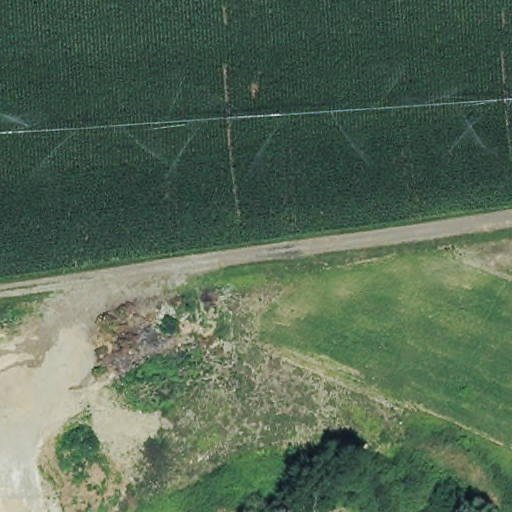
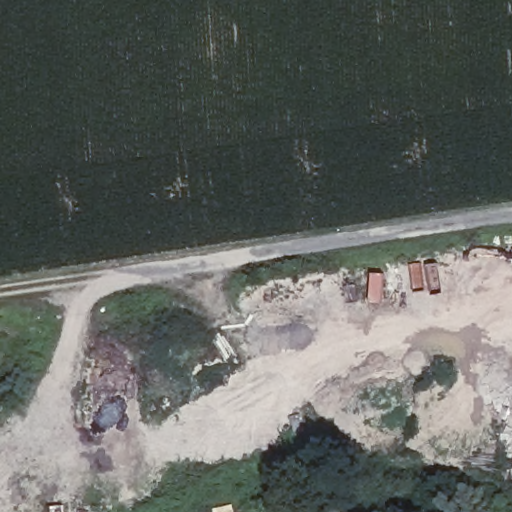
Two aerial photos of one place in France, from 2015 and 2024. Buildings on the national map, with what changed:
unchanged [(216,512),(216,510),(235,506),(235,512),(216,512)]

